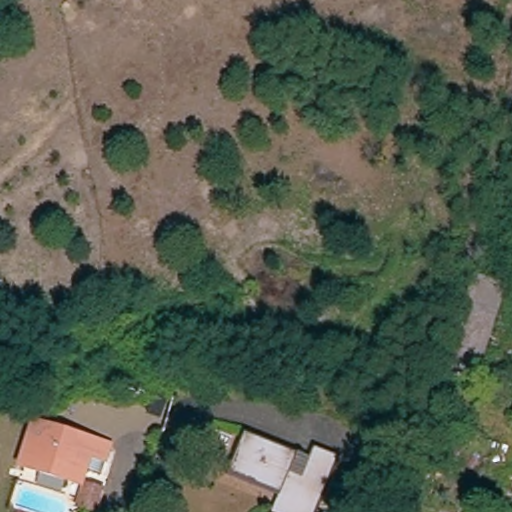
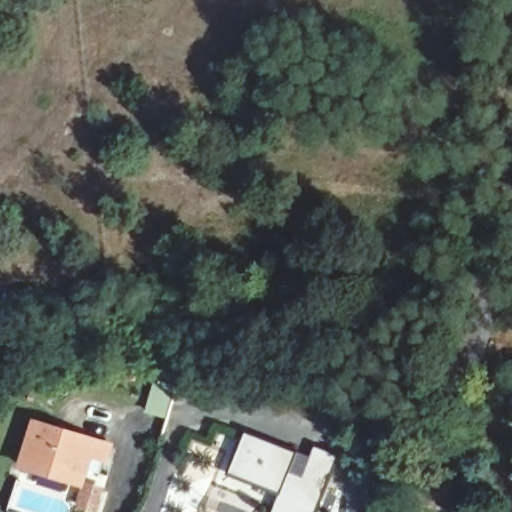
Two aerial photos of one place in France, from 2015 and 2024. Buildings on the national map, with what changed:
unchanged [(502,271),(468,367),(447,361),(481,263),(502,271)]
unchanged [(36,477),(15,471),(28,424),(85,438),(106,444),(100,462),(87,460),(78,490),(36,477)]
unchanged [(283,495),(232,478),(243,442),(293,458),(288,476),(301,480),(303,471),(310,451),(333,458),(327,478),(317,512),(277,512),(283,495)]

